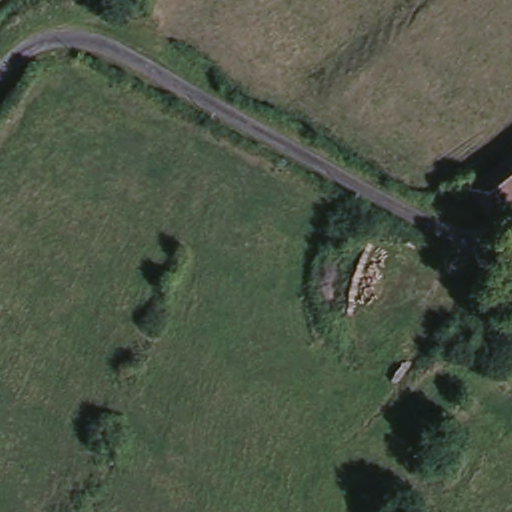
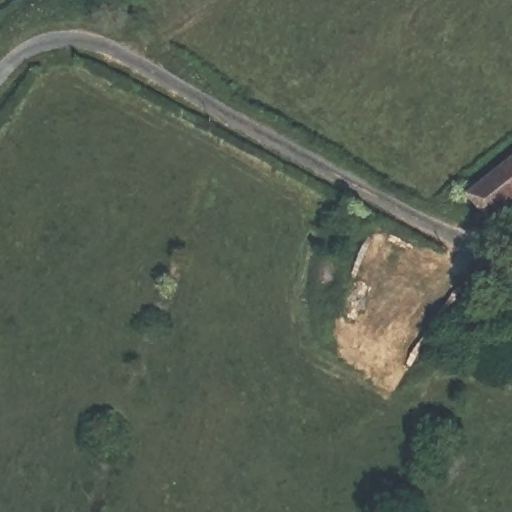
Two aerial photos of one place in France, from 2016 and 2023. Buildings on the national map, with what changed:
unchanged [(494,210),(482,198),(475,190),(512,159),(512,194),(494,210)]

